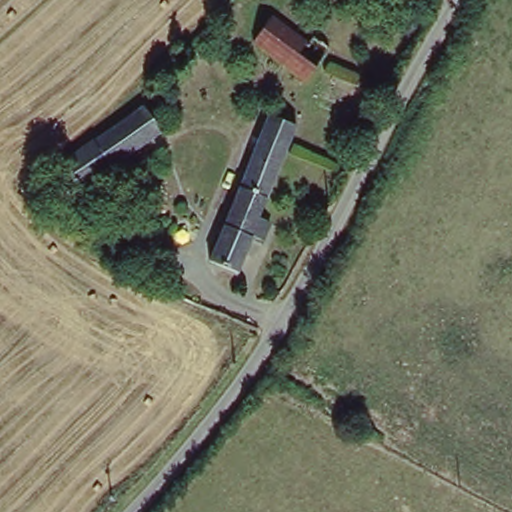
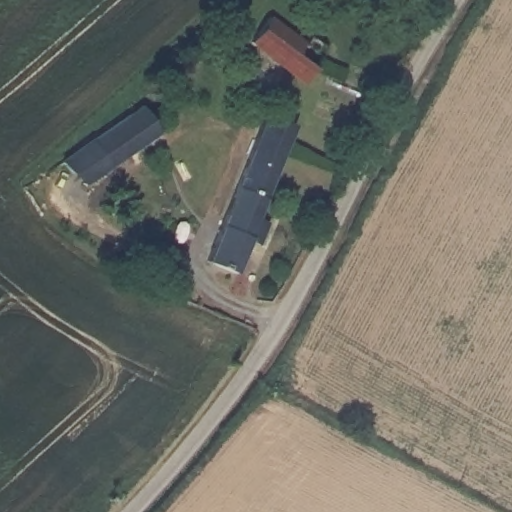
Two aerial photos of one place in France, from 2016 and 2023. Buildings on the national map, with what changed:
unchanged [(304,81),(295,75),(246,43),(265,16),(301,39),(308,31),(328,43),(306,77),(304,81)]
unchanged [(179,53),(190,68),(174,78),(162,64),(179,53)]
unchanged [(141,106),(160,131),(88,188),(67,161),(141,106)]
unchanged [(266,233),(252,229),(238,263),(206,251),(266,106),(298,117),(274,181),(260,214),(272,219),(269,225),(266,233)]

